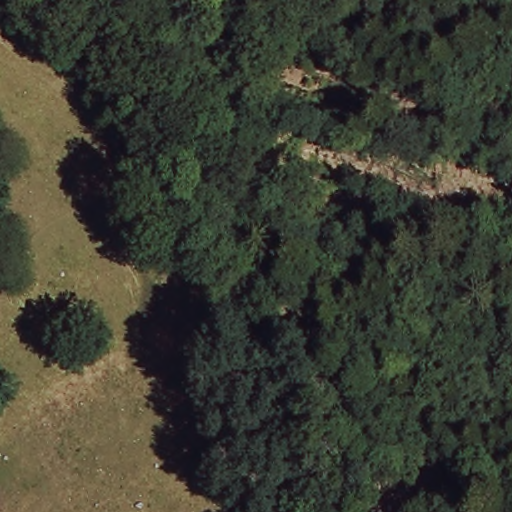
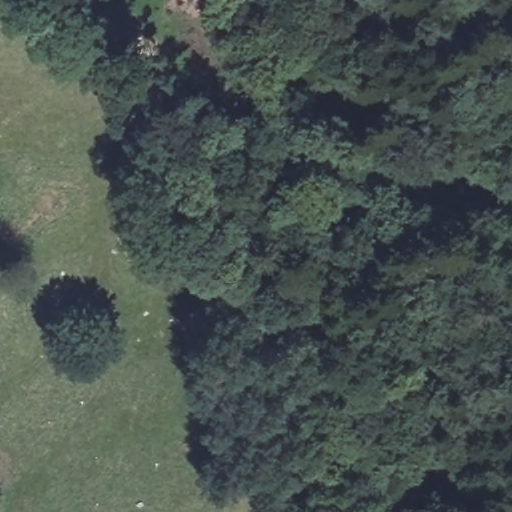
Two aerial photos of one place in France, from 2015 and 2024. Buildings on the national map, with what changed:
unchanged [(240,303),(260,336),(227,354),(208,321),(240,303)]

